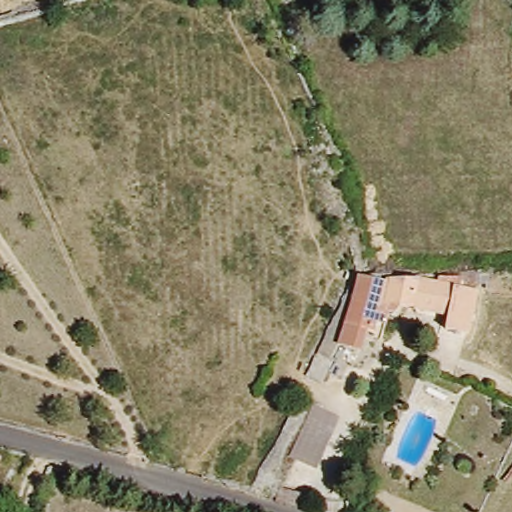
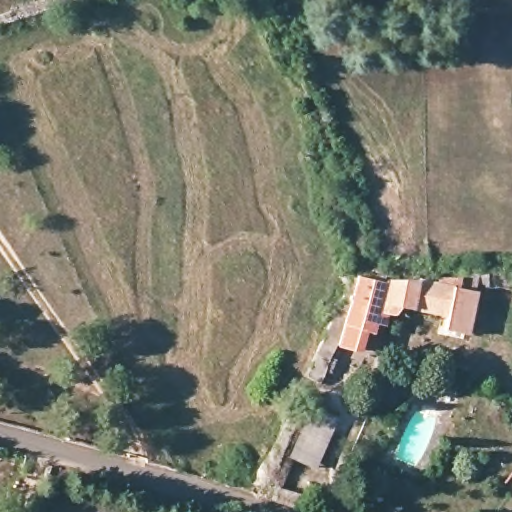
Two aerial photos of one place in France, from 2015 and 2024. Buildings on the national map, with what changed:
unchanged [(356,277),(384,277),(415,277),(415,281),(471,294),(461,334),(442,331),(439,326),(441,315),(398,306),(394,312),(375,309),(371,324),(367,334),(359,334),(353,356),(333,350),(339,328),(356,277)]
unchanged [(322,464),(295,462),(310,409),(337,419),(322,464)]

